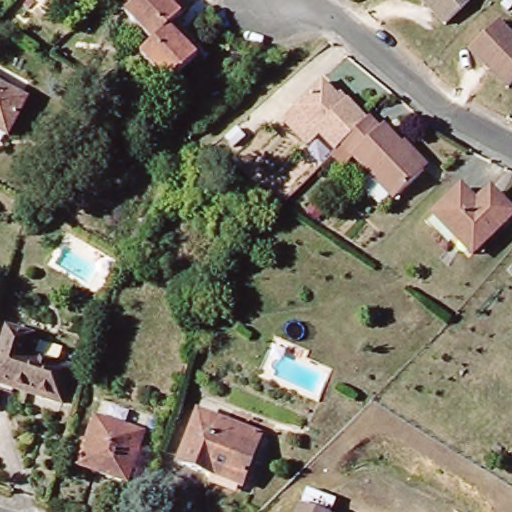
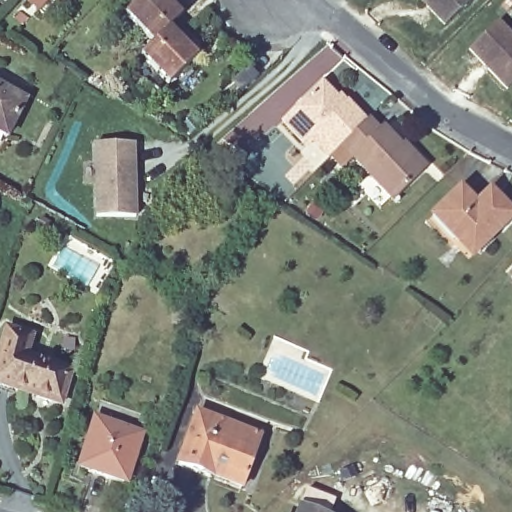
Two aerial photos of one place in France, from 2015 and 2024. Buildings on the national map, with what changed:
unchanged [(55,0),(60,0),(58,3),(55,0)]
unchanged [(149,45),(119,15),(135,0),(160,0),(161,1),(162,0),(171,0),(181,10),(169,24),(149,45)]
unchanged [(420,0),(470,0),(444,25),(420,0)]
unchanged [(512,37),(512,84),(507,89),(468,50),(497,21),(512,37)]
unchanged [(183,38),(178,44),(191,57),(163,85),(136,58),(149,45),(169,24),(183,38)]
unchanged [(365,121),(335,151),(330,156),(313,139),(303,147),(279,121),(320,81),(336,97),(341,92),(368,119),(365,121)]
unchanged [(25,100),(6,136),(0,133),(0,86),(25,100)]
unchanged [(426,167),(423,171),(391,201),(350,159),(341,168),(330,156),(335,151),(365,121),(368,119),(379,131),(382,126),(400,146),(403,143),(426,167)]
new [(92,144),(136,141),(138,217),(94,219),(92,144)]
unchanged [(453,243),(427,216),(450,193),(455,189),(470,204),(481,193),(486,193),(493,198),(509,215),(471,252),(467,257),(453,243)]
unchanged [(65,364),(55,399),(0,382),(0,328),(1,324),(26,331),(20,350),(65,364)]
unchanged [(240,488),(178,465),(197,412),(260,435),(240,488)]
unchanged [(126,483),(79,468),(94,419),(141,434),(126,483)]
unchanged [(301,484),(330,495),(323,512),(291,512),(301,484)]

